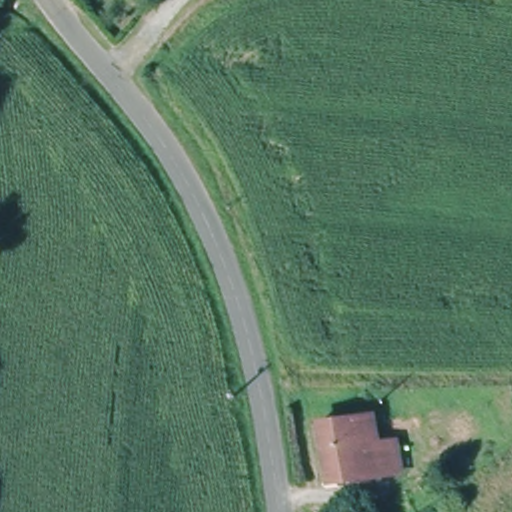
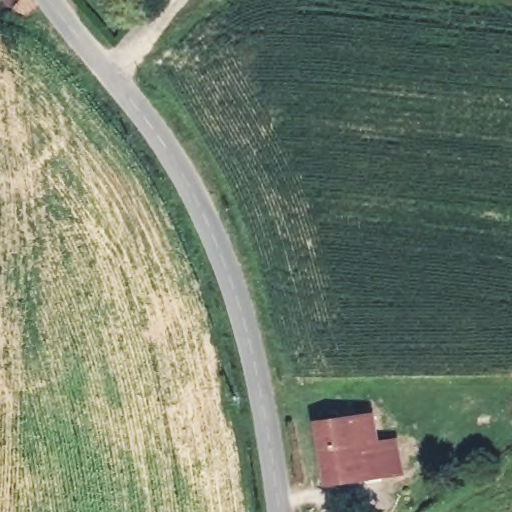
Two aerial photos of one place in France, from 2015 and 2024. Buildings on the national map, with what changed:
unchanged [(405,476),(383,479),(326,490),(313,423),(368,413),(376,445),(400,443),(405,476)]

